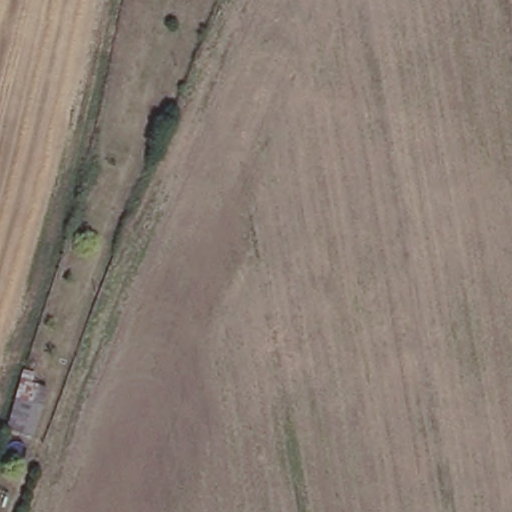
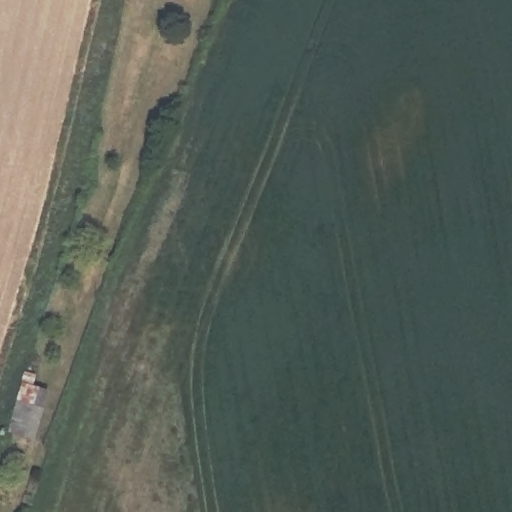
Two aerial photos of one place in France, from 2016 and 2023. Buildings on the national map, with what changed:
unchanged [(8,430),(23,382),(48,390),(35,439),(8,430)]

